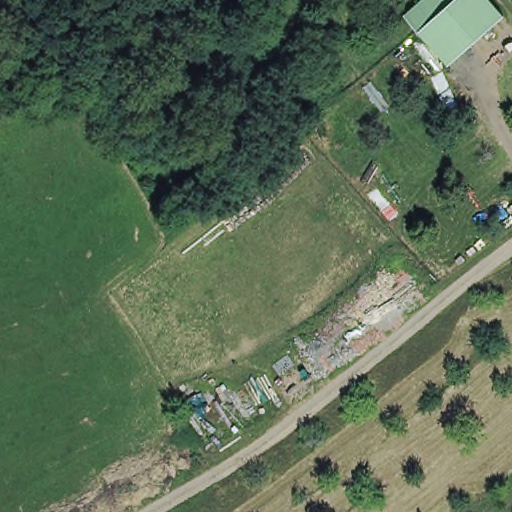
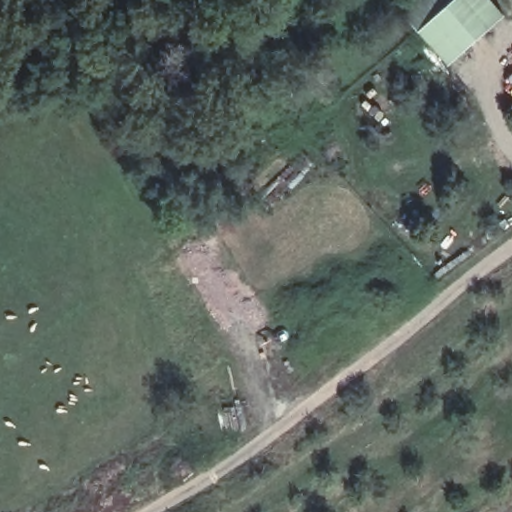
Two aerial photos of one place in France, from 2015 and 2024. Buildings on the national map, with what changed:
unchanged [(445,66),(400,11),(415,0),(491,0),(504,16),(445,66)]

